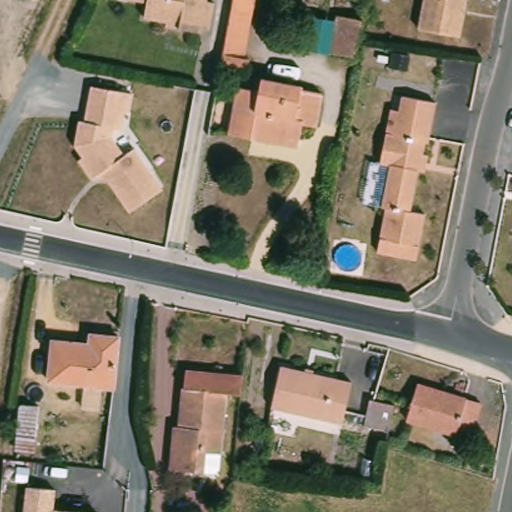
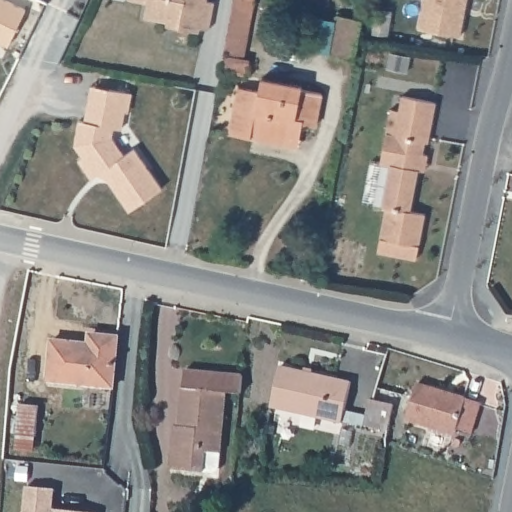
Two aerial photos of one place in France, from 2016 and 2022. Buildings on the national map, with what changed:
new [(0,0),(8,0),(24,8),(7,44),(0,40),(0,0)]
unchanged [(214,26),(207,25),(206,29),(171,22),(172,18),(150,14),(153,0),(219,0),(214,26)]
unchanged [(241,79),(216,74),(219,57),(230,0),(252,0),(240,61),(245,62),(241,79)]
unchanged [(464,33),(422,25),(428,0),(470,0),(464,33)]
unchanged [(330,58),(337,18),(362,23),(355,62),(330,58)]
unchanged [(252,136),(229,131),(238,84),(259,88),(261,76),(302,84),(301,86),(321,90),(315,123),(302,121),(299,137),(298,144),(252,136)]
unchanged [(134,112),(130,111),(126,129),(119,128),(117,137),(127,155),(138,148),(165,189),(132,211),(111,178),(113,174),(110,168),(96,178),(83,159),(87,156),(80,144),(85,120),(90,121),(94,103),(97,85),(121,90),(137,94),(134,112)]
unchanged [(429,213),(420,258),(382,250),(391,206),(387,205),(395,164),(385,162),(396,108),(404,109),(407,94),(440,101),(432,141),(430,140),(427,153),(432,154),(431,162),(429,170),(422,169),(414,210),(429,213)]
unchanged [(52,338),(94,343),(95,333),(119,335),(114,386),(48,379),(52,338)]
unchanged [(286,366),(357,381),(347,423),(276,407),(286,366)]
unchanged [(226,396),(220,456),(219,472),(214,476),(203,475),(170,472),(174,429),(179,429),(182,391),(184,391),(185,373),(243,378),(241,397),(226,396)]
unchanged [(477,430),(462,426),(461,432),(412,418),(422,381),(486,400),(477,430)]
unchanged [(400,404),(395,423),(394,430),(370,424),(375,399),(379,400),(400,404)]
unchanged [(36,440),(18,438),(21,407),(39,409),(36,440)]
unchanged [(60,487),(58,507),(104,511),(104,512),(30,512),(33,484),(60,487)]

